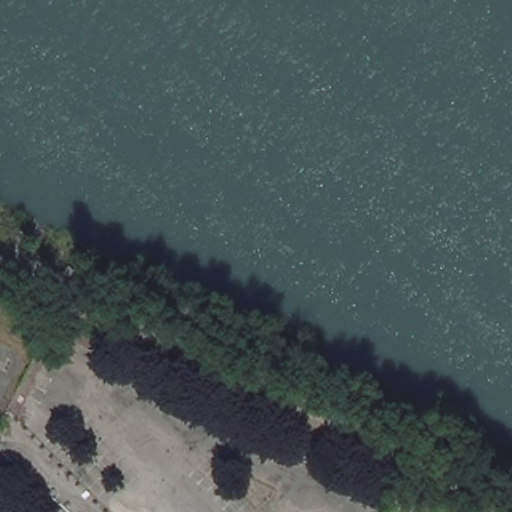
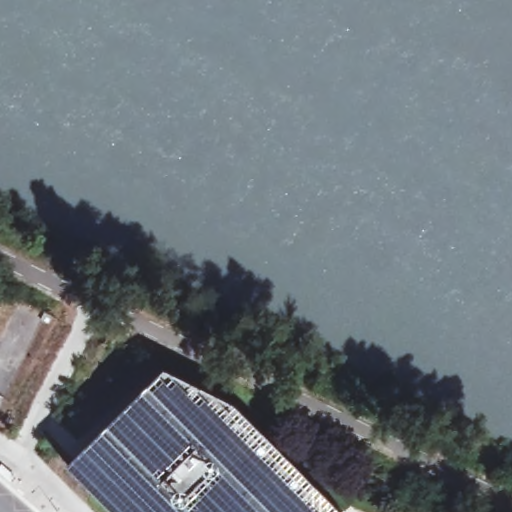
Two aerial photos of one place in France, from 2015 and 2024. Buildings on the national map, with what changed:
new [(165,371),(237,408),(341,512),(112,512),(67,466),(165,371)]

